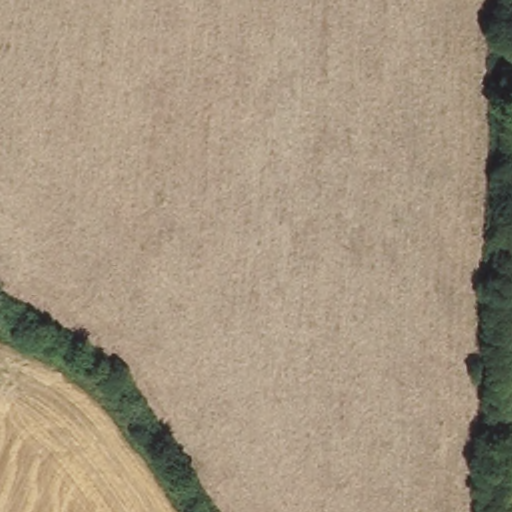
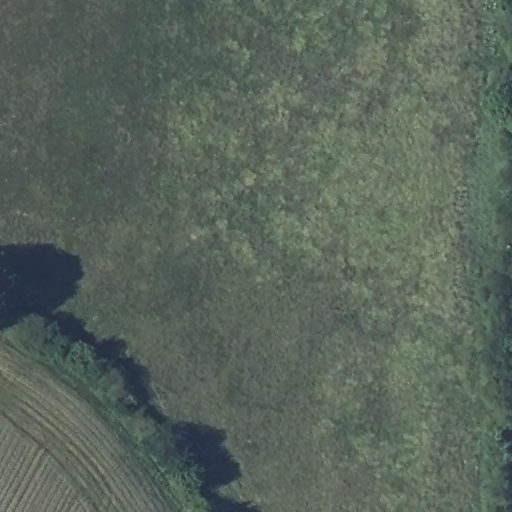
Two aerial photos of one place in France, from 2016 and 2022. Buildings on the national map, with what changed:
[]

